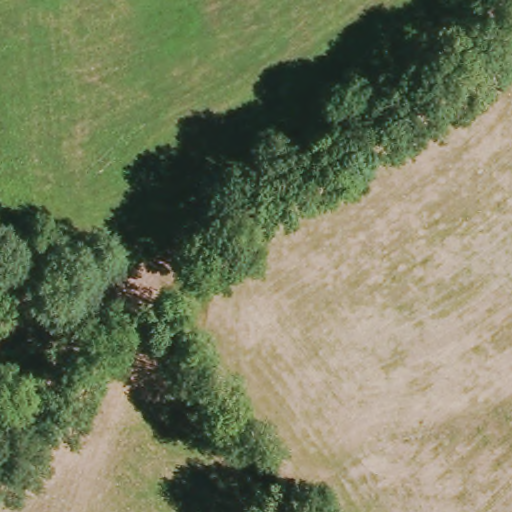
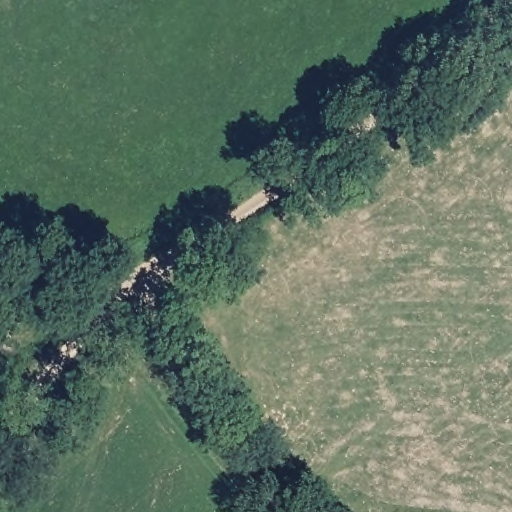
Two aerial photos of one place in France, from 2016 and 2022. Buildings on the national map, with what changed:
unchanged [(0,371),(0,317),(16,322),(0,371)]

